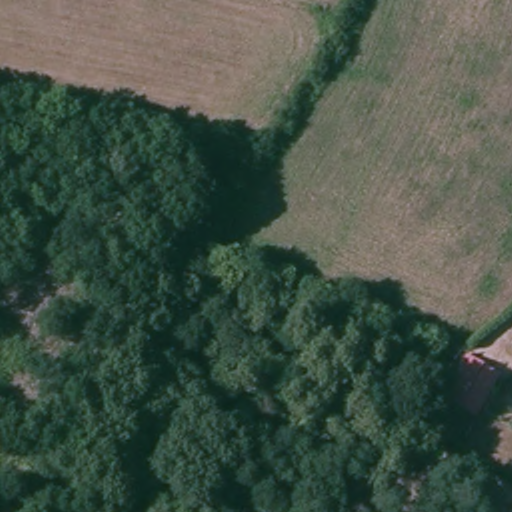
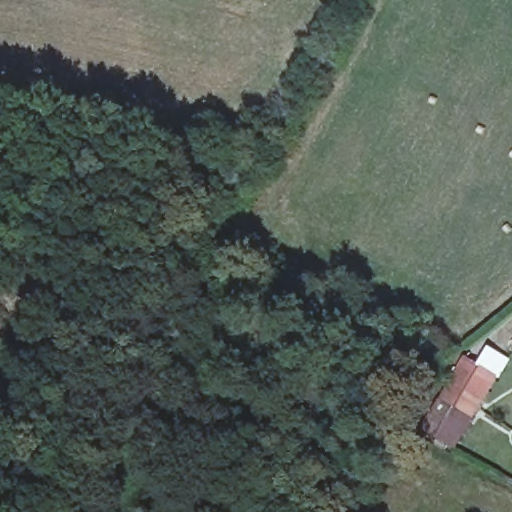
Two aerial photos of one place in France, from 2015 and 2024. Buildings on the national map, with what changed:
new [(422,426),(465,357),(480,365),(490,347),(512,361),(501,379),(499,377),(458,451),(422,426)]

